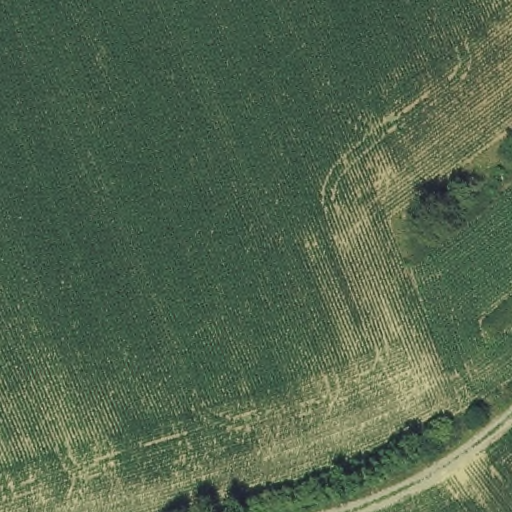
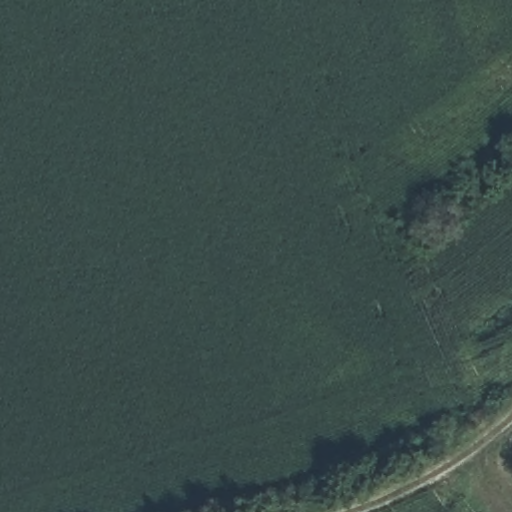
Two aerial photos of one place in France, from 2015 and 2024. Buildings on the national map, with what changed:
[]

